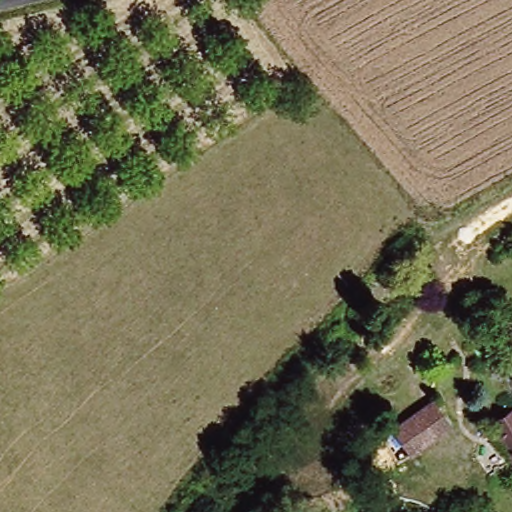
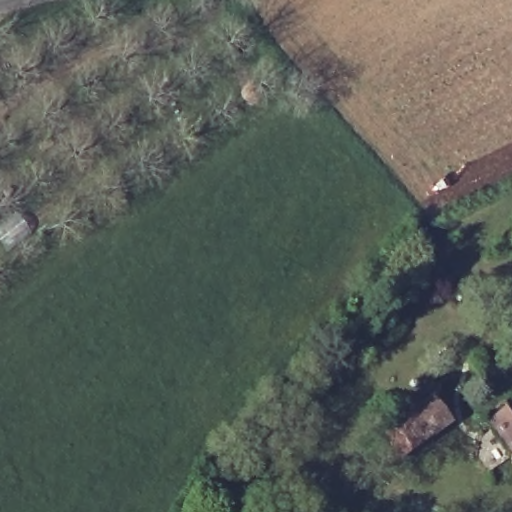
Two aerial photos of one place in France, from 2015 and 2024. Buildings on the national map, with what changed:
unchanged [(410,460),(388,435),(431,397),(453,422),(410,460)]
unchanged [(510,406),(512,410),(512,462),(490,425),(488,419),(510,406)]

